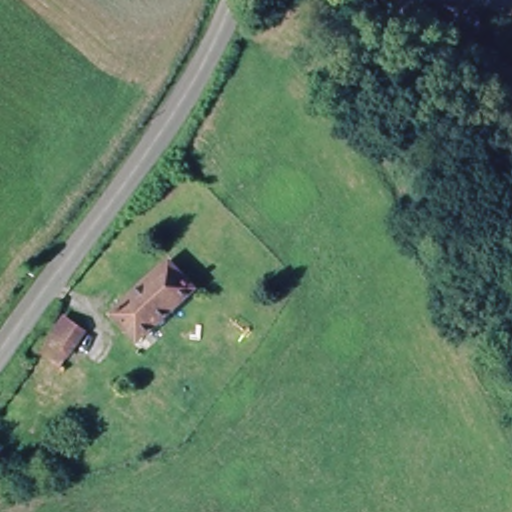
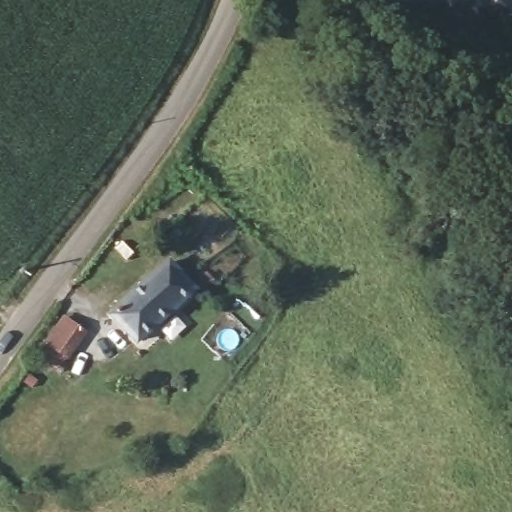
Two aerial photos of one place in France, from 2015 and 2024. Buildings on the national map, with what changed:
unchanged [(507,7),(482,6),(482,0),(512,0),(512,8),(507,7)]
unchanged [(141,343),(131,333),(114,316),(171,263),(196,291),(141,343)]
unchanged [(98,340),(79,357),(66,368),(32,332),(49,317),(58,327),(74,313),(98,340)]

